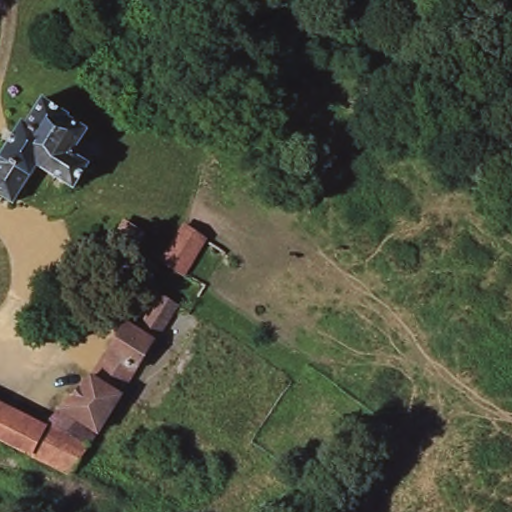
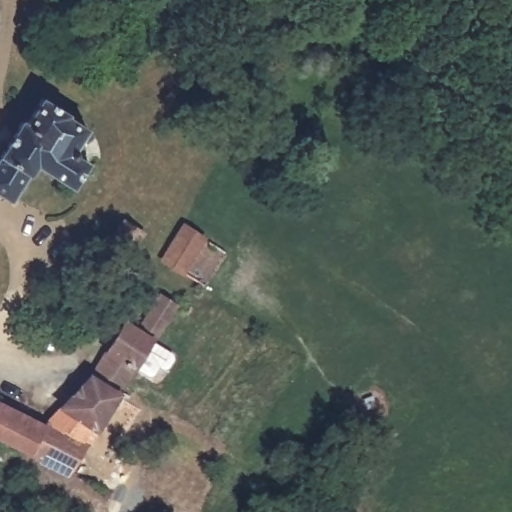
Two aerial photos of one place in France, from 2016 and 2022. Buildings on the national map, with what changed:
unchanged [(0,160),(1,157),(22,122),(26,125),(30,118),(42,99),(69,115),(67,117),(88,129),(73,154),(89,164),(74,188),(37,165),(13,203),(0,195),(0,160)]
unchanged [(144,233),(122,267),(104,255),(125,221),(144,233)]
unchanged [(184,226),(205,239),(184,274),(162,260),(184,226)]
unchanged [(138,330),(149,313),(161,295),(176,305),(155,341),(121,394),(92,377),(91,376),(125,322),(138,330)]
unchanged [(31,418),(44,425),(56,412),(91,376),(92,377),(121,394),(71,474),(0,440),(0,403),(25,415),(31,418)]

